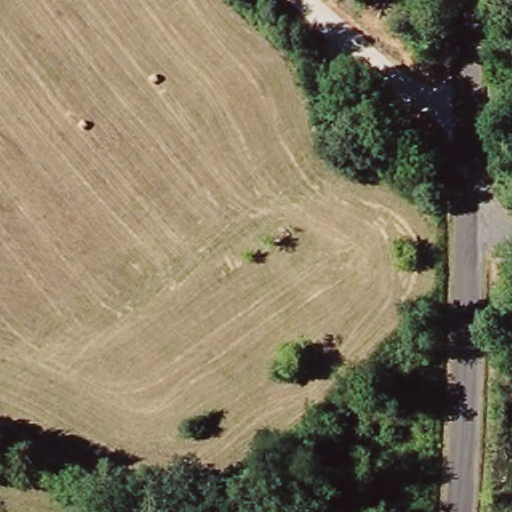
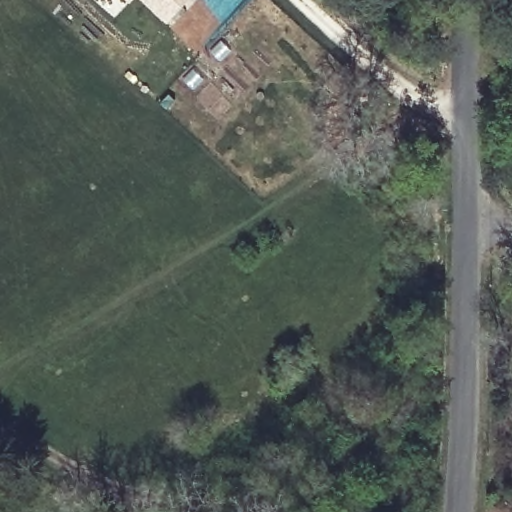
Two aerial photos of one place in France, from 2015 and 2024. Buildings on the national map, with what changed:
new [(126,0),(131,0),(128,2),(126,0)]
new [(141,0),(190,0),(167,24),(141,0)]

